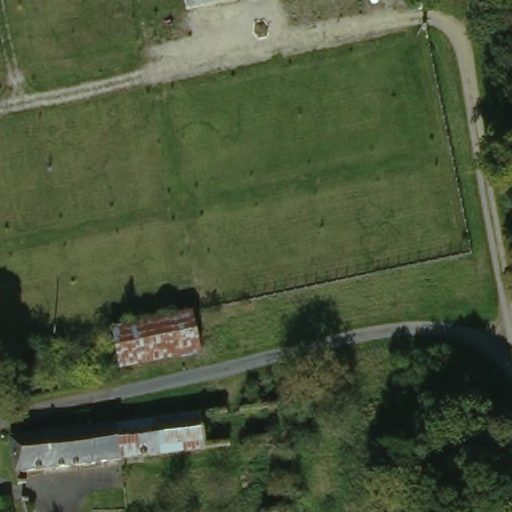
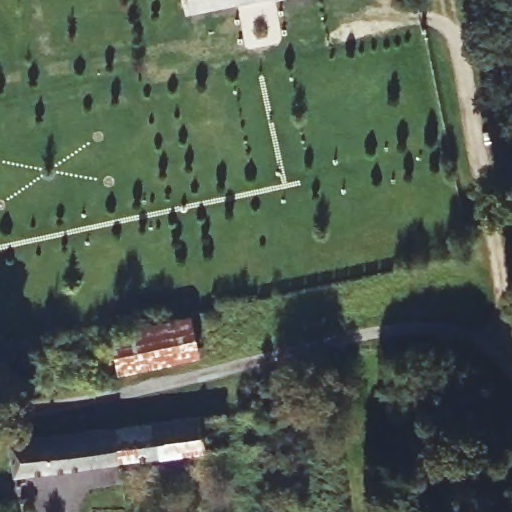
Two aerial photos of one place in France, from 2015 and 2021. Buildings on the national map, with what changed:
unchanged [(226,0),(187,7),(186,0),(226,0)]
unchanged [(130,324),(189,312),(196,355),(118,369),(112,327),(130,324)]
unchanged [(147,421),(207,413),(210,448),(123,460),(21,471),(15,436),(147,421)]

